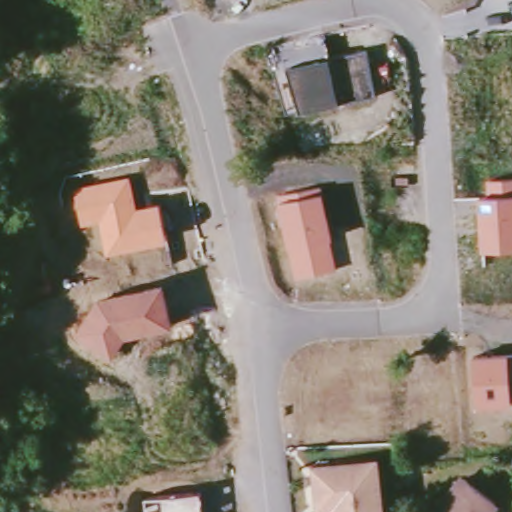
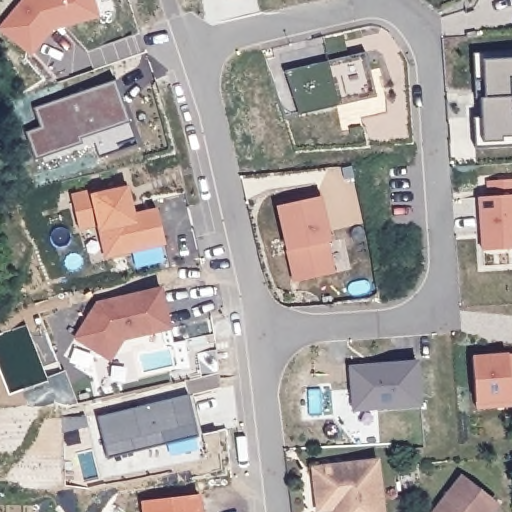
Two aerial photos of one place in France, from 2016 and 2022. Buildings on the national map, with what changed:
new [(0,28),(22,0),(93,0),(98,18),(52,30),(32,54),(0,28)]
unchanged [(297,108),(286,115),(269,53),(322,38),(329,61),(365,53),(375,98),(338,105),(299,114),(297,108)]
new [(476,146),(475,118),(482,118),(482,98),(485,98),(485,79),(475,80),(473,54),(512,52),(512,77),(509,78),(511,115),(512,115),(512,145),(476,146)]
unchanged [(480,197),(489,197),(487,182),(512,180),(512,249),(480,252),(480,197)]
unchanged [(105,260),(97,226),(79,230),(72,194),(127,182),(134,213),(157,208),(165,246),(105,260)]
unchanged [(294,281),(287,248),(278,208),(276,200),(318,190),(321,196),(332,241),(329,242),(336,273),(294,281)]
unchanged [(124,341),(111,362),(73,339),(96,302),(162,287),(172,330),(124,341)]
unchanged [(474,357),(509,354),(512,405),(477,408),(474,357)]
new [(421,406),(354,412),(349,366),(419,360),(421,406)]
new [(107,458),(98,417),(187,395),(197,436),(107,458)]
unchanged [(317,500),(313,468),(377,460),(383,512),(332,512),(332,510),(317,511),(317,500)]
unchanged [(459,478),(491,503),(483,512),(432,512),(459,478)]
unchanged [(144,502),(173,501),(198,496),(200,512),(145,512),(144,502)]

